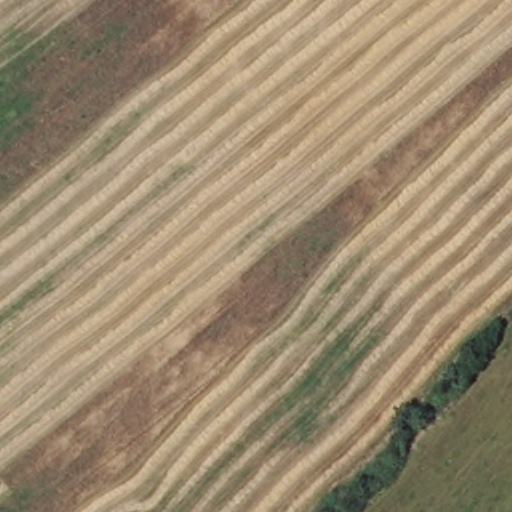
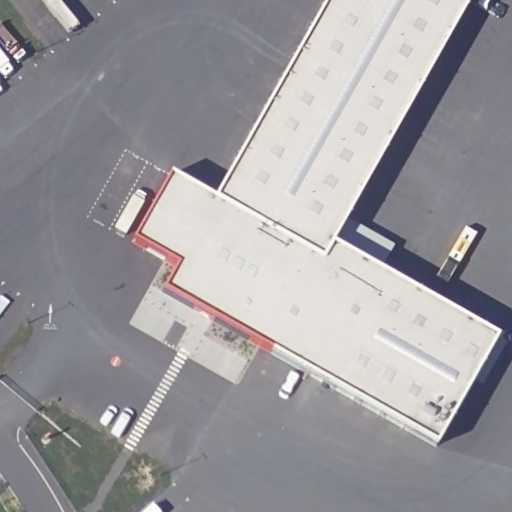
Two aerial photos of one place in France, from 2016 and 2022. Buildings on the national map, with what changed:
new [(167,177),(212,202),(326,0),(469,0),(344,222),(391,249),(378,272),(495,340),(433,449),(160,293),(175,268),(130,243),(167,177)]

